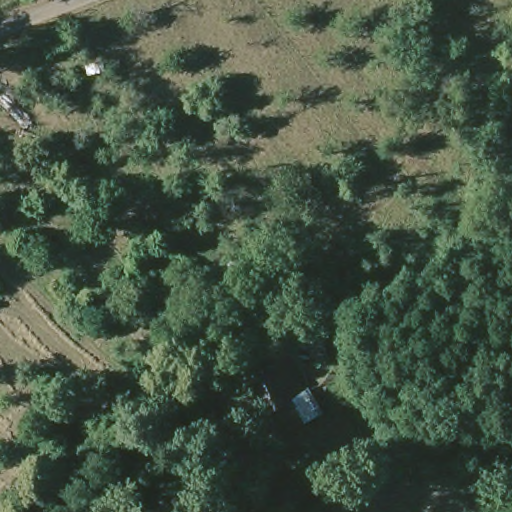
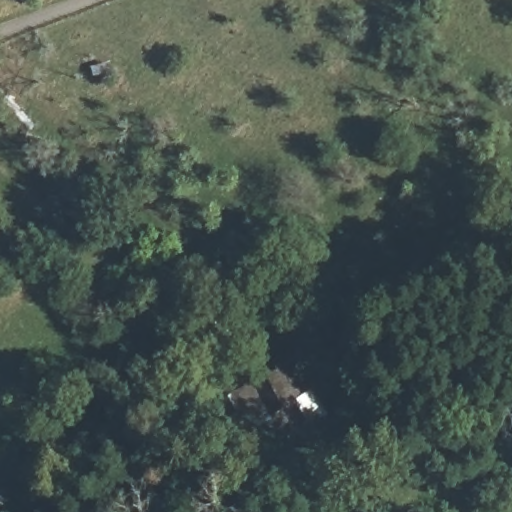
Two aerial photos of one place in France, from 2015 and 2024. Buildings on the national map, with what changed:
unchanged [(282,440),(251,383),(295,361),(309,389),(317,386),(332,416),(282,440)]

